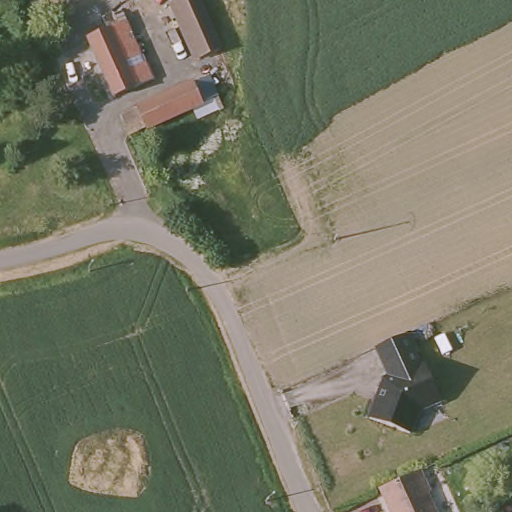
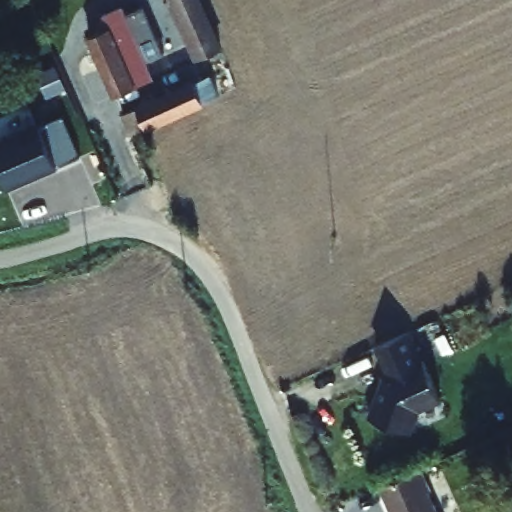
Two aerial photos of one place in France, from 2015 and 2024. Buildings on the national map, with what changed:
unchanged [(227,47),(205,57),(181,0),(207,0),(227,47)]
unchanged [(128,15),(132,13),(135,22),(148,48),(130,56),(140,80),(120,89),(95,31),(128,15)]
unchanged [(132,132),(124,113),(209,74),(219,94),(132,132)]
new [(63,116),(81,155),(57,165),(40,125),(63,116)]
new [(0,170),(0,139),(38,123),(40,125),(57,165),(57,167),(7,188),(0,170)]
unchanged [(435,353),(453,393),(430,403),(422,426),(382,411),(397,371),(402,369),(388,340),(417,326),(422,324),(431,344),(427,346),(430,355),(435,353)]
unchanged [(432,489),(429,493),(438,512),(399,512),(397,509),(393,511),(382,487),(423,468),(432,489)]

